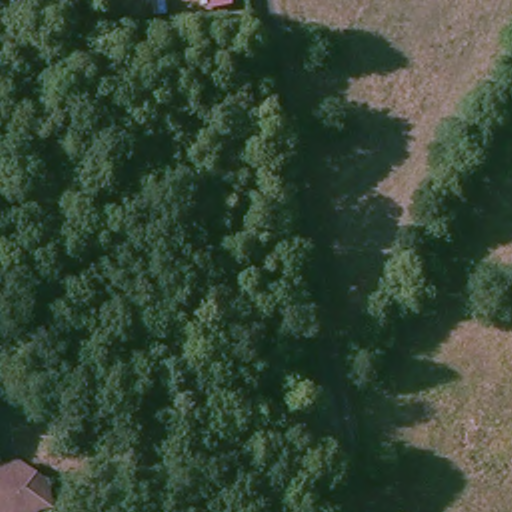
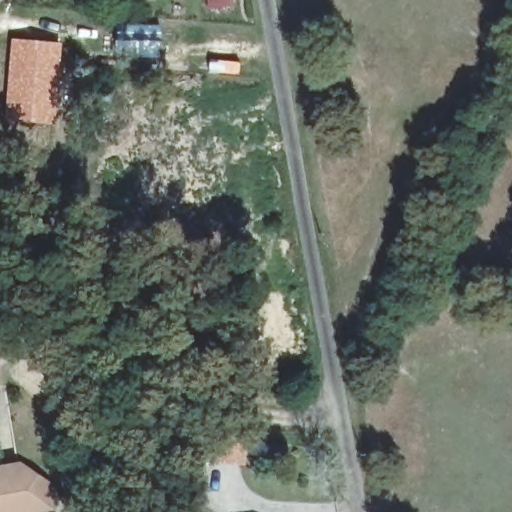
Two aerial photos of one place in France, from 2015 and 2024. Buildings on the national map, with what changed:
demolished [(181,0),(179,18),(110,13),(111,0),(181,0)]
new [(10,38),(62,43),(57,125),(4,119),(10,38)]
unchanged [(44,506),(26,512),(2,512),(0,508),(0,448),(10,444),(50,464),(55,477),(44,506)]

